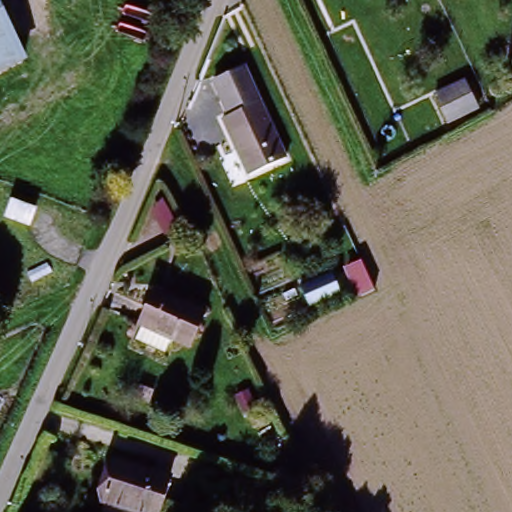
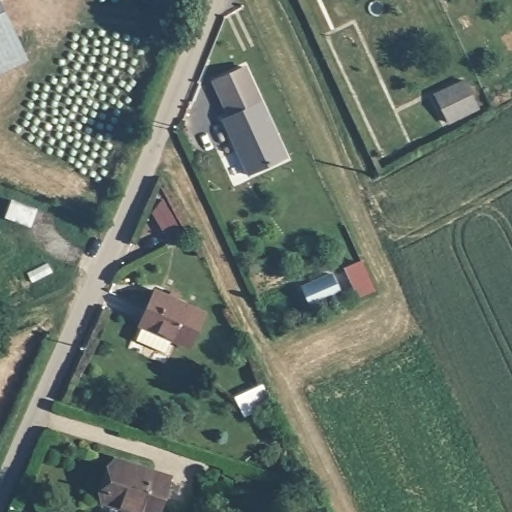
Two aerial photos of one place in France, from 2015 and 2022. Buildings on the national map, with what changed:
unchanged [(0,63),(0,0),(1,0),(27,51),(0,63)]
unchanged [(215,77),(246,64),(286,152),(252,167),(229,115),(231,114),(215,77)]
unchanged [(476,104),(452,116),(440,92),(465,81),(476,104)]
unchanged [(7,213),(11,197),(34,203),(30,219),(7,213)]
unchanged [(372,292),(359,297),(346,267),(357,260),(372,292)]
unchanged [(311,300),(304,280),(332,269),(340,288),(311,300)]
unchanged [(139,325),(155,285),(208,302),(192,347),(180,342),(173,357),(138,341),(145,327),(139,325)]
unchanged [(101,492),(114,451),(162,467),(148,507),(101,492)]

